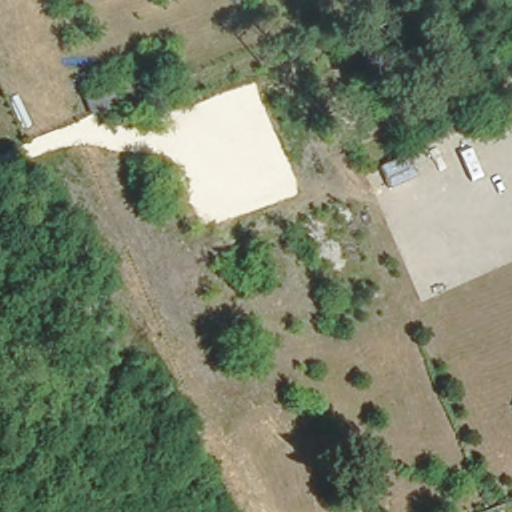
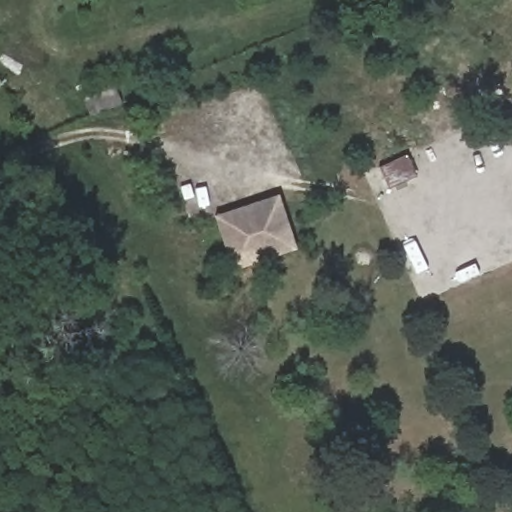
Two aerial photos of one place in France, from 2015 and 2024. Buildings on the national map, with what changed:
new [(233,270),(215,215),(279,194),(297,249),(233,270)]

